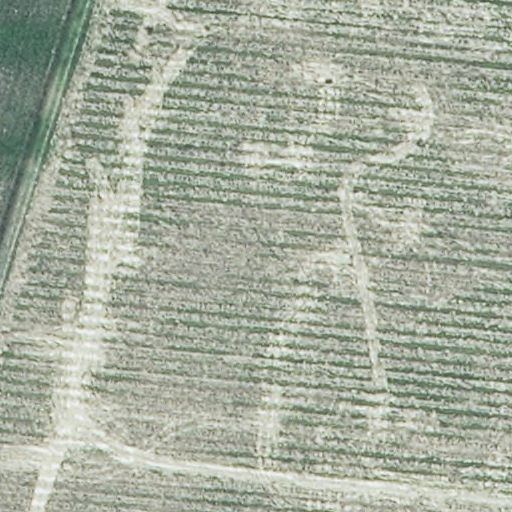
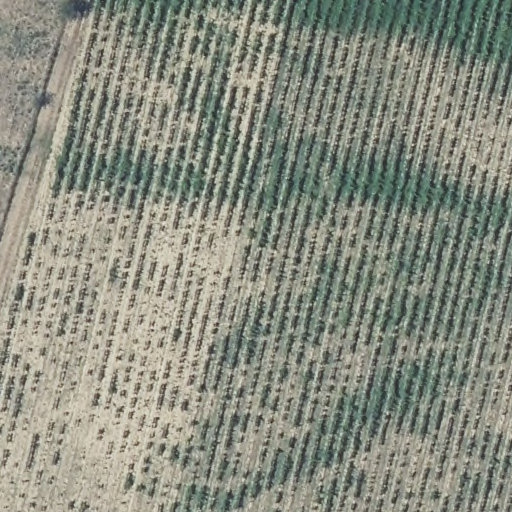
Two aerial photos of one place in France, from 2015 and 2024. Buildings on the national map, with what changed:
[]

